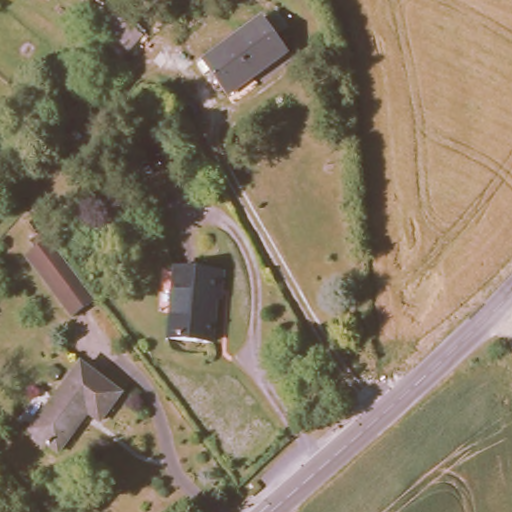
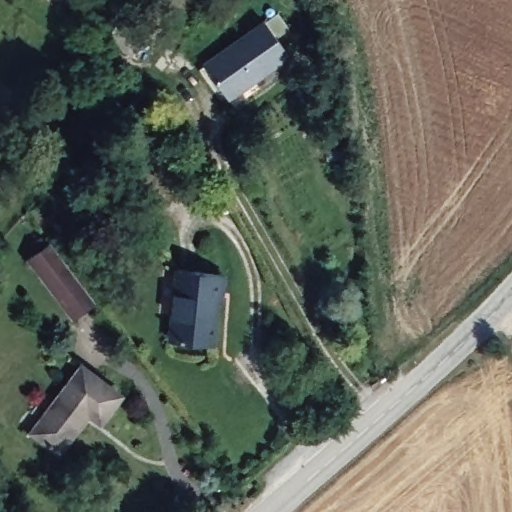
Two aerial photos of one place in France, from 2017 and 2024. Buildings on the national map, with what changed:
unchanged [(198,58),(256,15),(281,46),(222,90),(198,58)]
unchanged [(24,252),(54,228),(97,295),(65,315),(24,252)]
unchanged [(171,267),(214,269),(209,342),(165,338),(171,267)]
unchanged [(82,363),(119,394),(98,420),(89,412),(56,450),(30,427),(82,363)]

